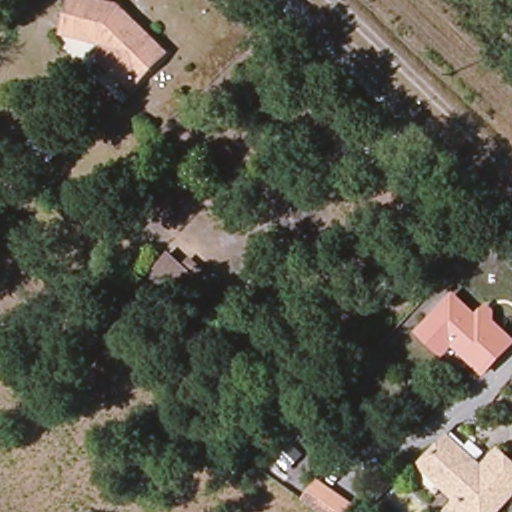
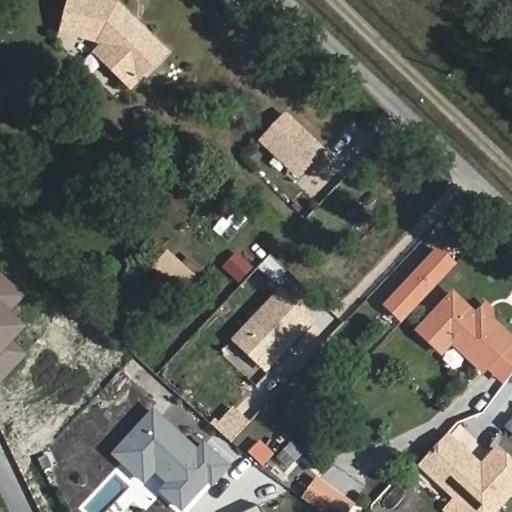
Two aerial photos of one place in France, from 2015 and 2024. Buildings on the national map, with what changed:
unchanged [(171,54),(137,89),(97,48),(60,41),(68,0),(102,0),(119,3),(171,54)]
new [(296,180),(257,140),(287,110),(327,150),(296,180)]
new [(402,325),(382,306),(438,246),(457,264),(402,325)]
new [(22,299),(8,315),(25,330),(11,345),(25,358),(1,383),(0,382),(0,279),(22,299)]
unchanged [(453,347),(443,357),(415,333),(454,291),(477,313),(487,303),(495,309),(493,319),(512,336),(512,346),(485,376),(453,347)]
new [(271,369),(240,341),(285,293),(316,322),(271,369)]
new [(204,440),(232,465),(212,487),(208,484),(181,512),(180,512),(158,491),(165,483),(156,474),(145,485),(112,454),(154,407),(197,447),(204,440)]
unchanged [(497,446),(512,460),(512,500),(501,512),(445,512),(452,501),(416,467),(447,434),(482,464),(497,446)]
demolished [(345,459),(364,477),(337,506),(321,488),(345,459)]
new [(357,506),(353,512),(321,512),(302,498),(317,478),(357,506)]
new [(263,508),(265,512),(256,512),(263,508)]

